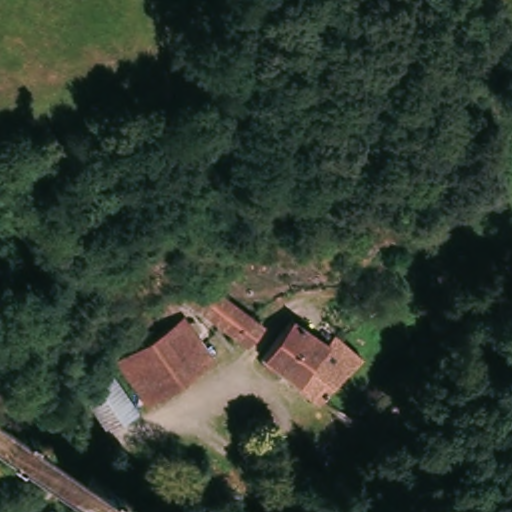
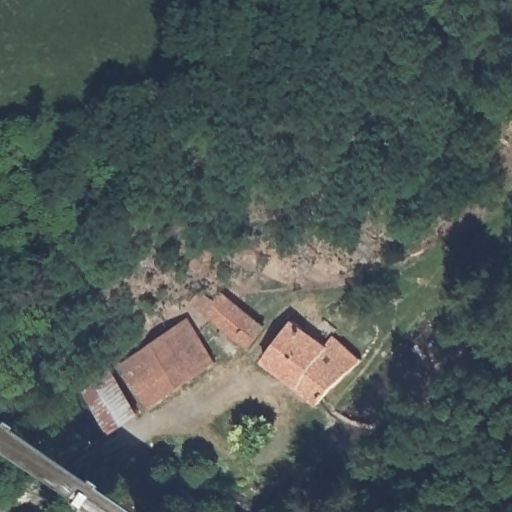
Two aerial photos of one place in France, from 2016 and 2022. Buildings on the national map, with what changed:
unchanged [(209,273),(271,324),(253,346),(191,296),(209,273)]
unchanged [(301,319),(330,343),(342,331),(368,353),(325,402),(271,358),(301,319)]
unchanged [(193,320),(220,358),(155,401),(129,362),(193,320)]
unchanged [(111,371),(140,412),(115,430),(87,389),(111,371)]

